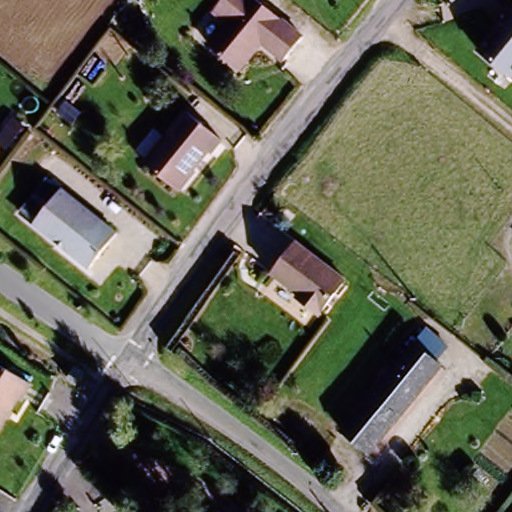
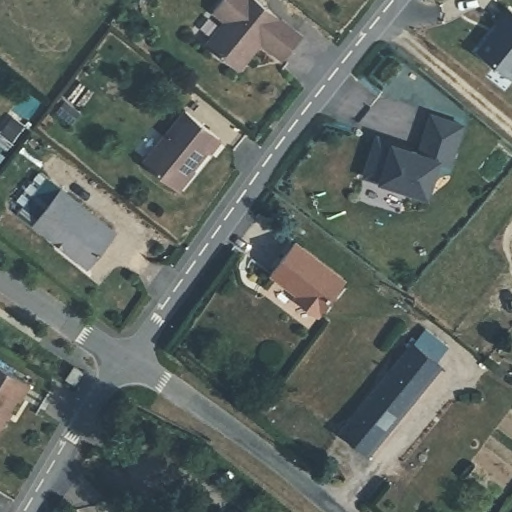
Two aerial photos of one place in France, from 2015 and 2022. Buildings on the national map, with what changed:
unchanged [(217,0),(257,0),(299,30),(279,60),(256,44),(235,70),(204,47),(221,21),(208,12),(217,0)]
unchanged [(512,13),(512,80),(477,51),(512,13)]
new [(374,131),(418,146),(431,106),(463,116),(449,156),(439,152),(425,190),(361,168),(374,131)]
unchanged [(182,116),(218,143),(208,156),(204,154),(175,193),(142,168),(182,116)]
unchanged [(117,234),(91,268),(35,224),(61,191),(117,234)]
unchanged [(265,277),(291,242),(340,279),(311,317),(294,305),(297,301),(265,277)]
unchanged [(336,430),(407,348),(411,342),(422,330),(439,345),(429,357),(438,365),(433,370),(363,453),(336,430)]
unchanged [(29,386),(20,401),(18,399),(0,430),(0,369),(29,386)]

